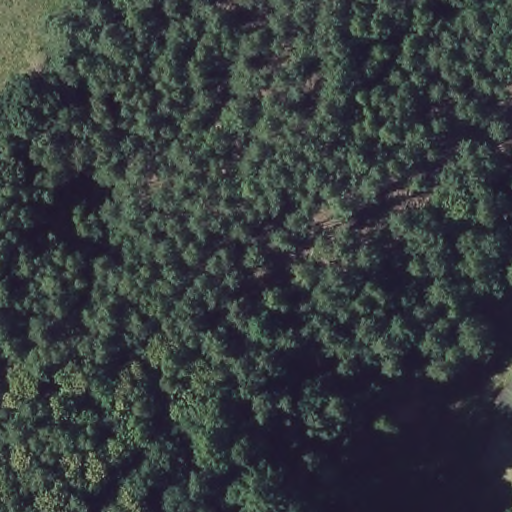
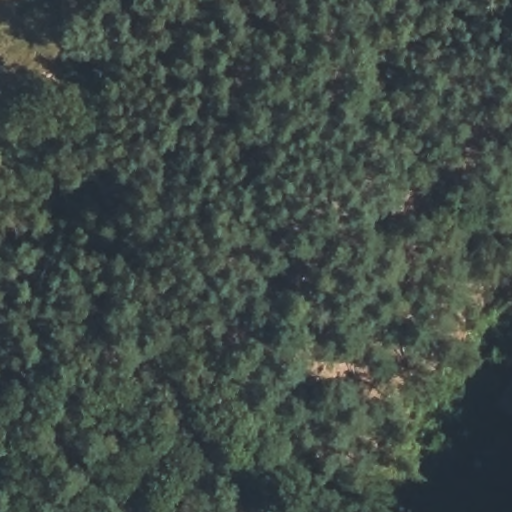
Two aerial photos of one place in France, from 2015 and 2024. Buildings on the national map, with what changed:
unchanged [(497,404),(512,385),(512,415),(497,404)]

